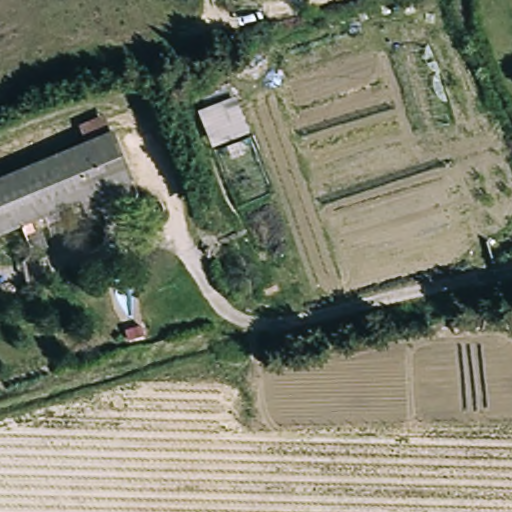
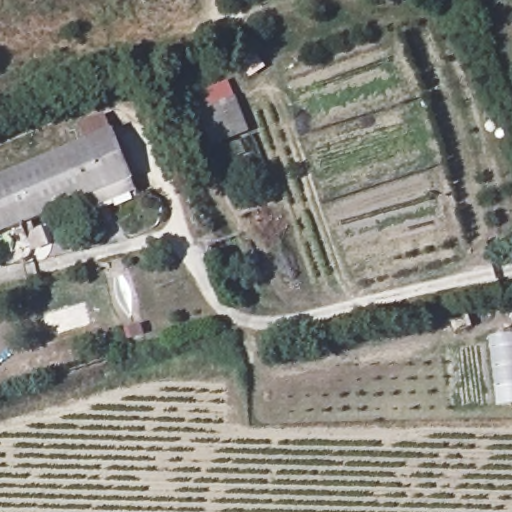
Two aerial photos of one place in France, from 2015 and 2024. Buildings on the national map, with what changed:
unchanged [(250,131),(273,190),(243,202),(220,142),(213,145),(198,109),(237,94),(250,131)]
unchanged [(85,133),(79,117),(106,106),(112,122),(132,169),(137,181),(85,203),(80,191),(0,224),(0,168),(85,133)]
new [(512,335),(512,404),(496,406),(487,338),(512,335)]

